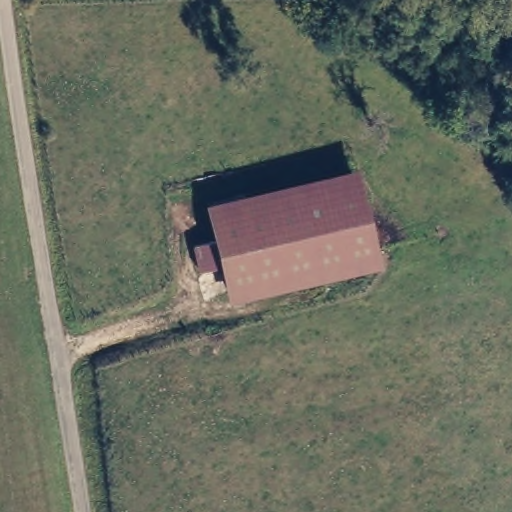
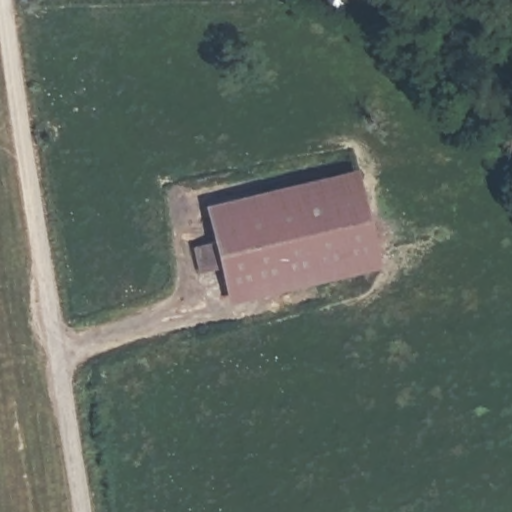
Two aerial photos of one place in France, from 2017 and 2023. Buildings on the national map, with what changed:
unchanged [(357,162),(377,261),(230,296),(223,260),(199,265),(193,239),(215,232),(208,196),(357,162)]

